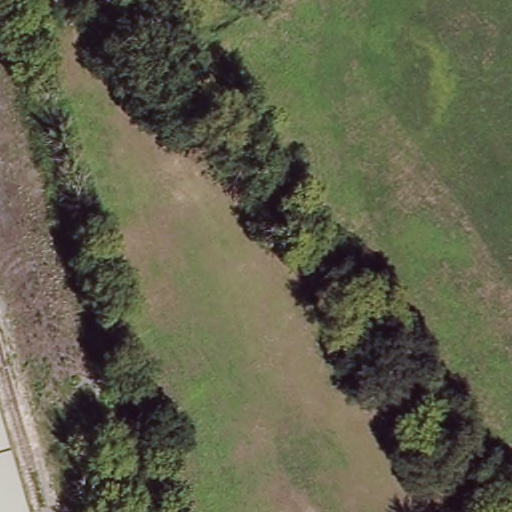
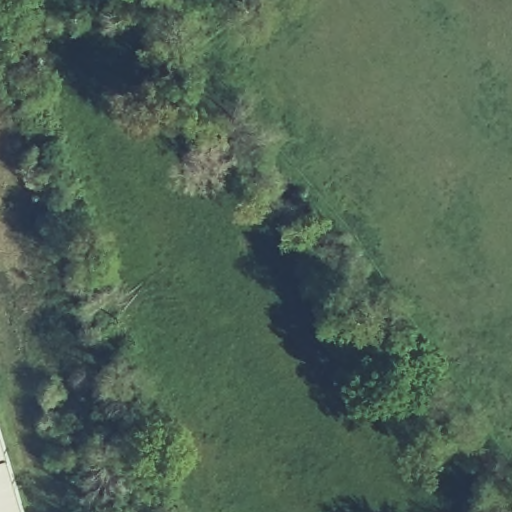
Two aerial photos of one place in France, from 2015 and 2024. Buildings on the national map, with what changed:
unchanged [(0,445),(20,512),(0,512),(0,445)]

